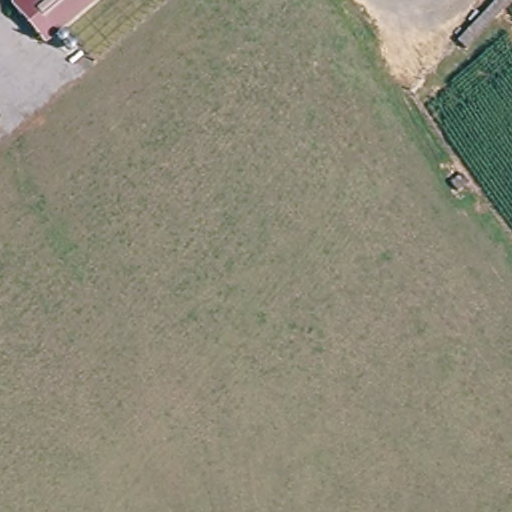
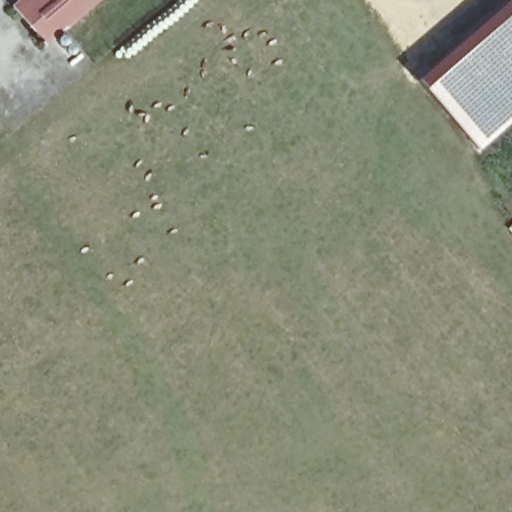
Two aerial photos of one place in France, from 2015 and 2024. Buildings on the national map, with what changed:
unchanged [(100,0),(51,43),(20,8),(29,0),(100,0)]
new [(490,16),(490,15),(490,13),(505,0),(512,0),(512,120),(478,150),(420,86),(492,19),(490,16)]

